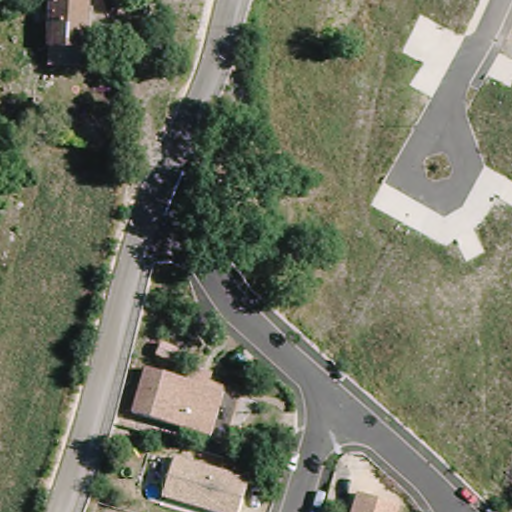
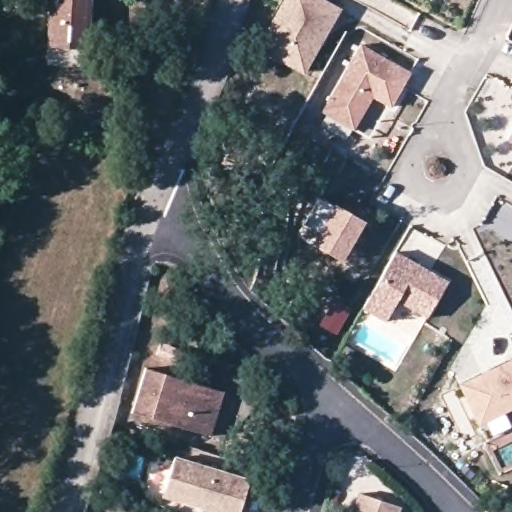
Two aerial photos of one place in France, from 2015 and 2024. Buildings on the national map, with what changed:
unchanged [(87,47),(53,45),(55,0),(90,0),(87,47)]
new [(341,9),(303,75),(256,48),(285,0),(323,0),(341,9)]
new [(411,72),(390,108),(372,99),(355,131),(323,112),(360,45),(411,72)]
new [(512,130),(512,142),(507,139),(512,130)]
new [(335,203),(363,221),(340,262),(311,243),(316,233),(301,225),(319,196),(335,203)]
new [(447,281),(428,317),(397,301),(385,322),(363,309),(395,252),(447,281)]
unchanged [(187,348),(180,368),(155,358),(162,341),(187,348)]
new [(460,384),(512,359),(512,409),(479,424),(460,384)]
unchanged [(147,369),(226,392),(213,437),(134,414),(147,369)]
unchanged [(176,458),(251,479),(242,512),(213,512),(205,509),(165,498),(167,492),(176,458)]
unchanged [(399,506),(397,512),(353,512),(359,493),(399,506)]

